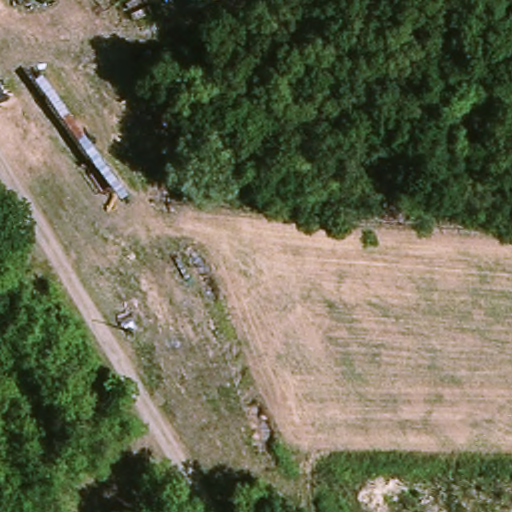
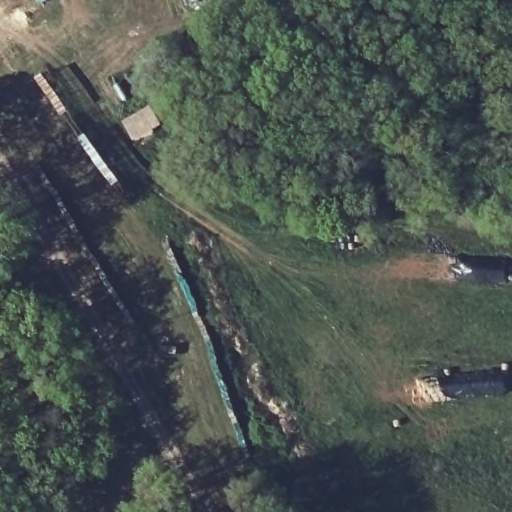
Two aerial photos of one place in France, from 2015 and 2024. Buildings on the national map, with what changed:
unchanged [(187,5),(184,0),(198,0),(187,5)]

